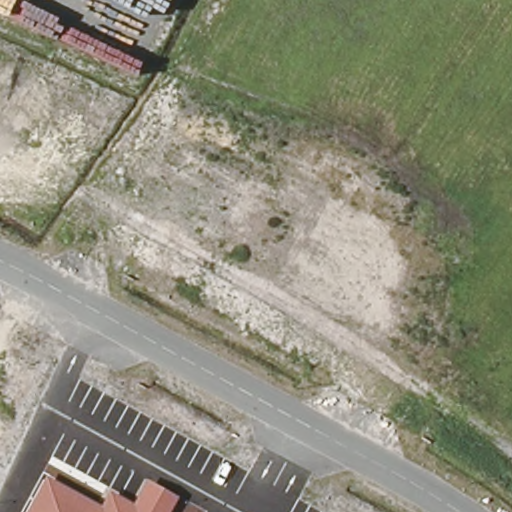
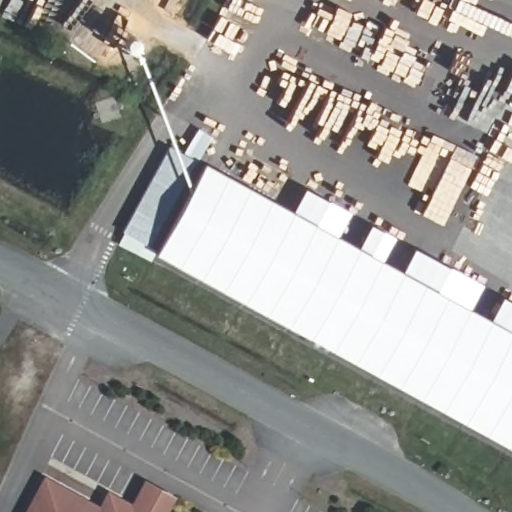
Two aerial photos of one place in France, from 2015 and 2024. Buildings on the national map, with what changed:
new [(155,254),(150,263),(116,244),(121,232),(169,146),(204,164),(155,254)]
new [(155,254),(204,164),(512,332),(512,449),(155,254)]
unchanged [(43,475),(99,505),(108,490),(131,503),(144,479),(176,496),(168,512),(23,512),(43,475)]

